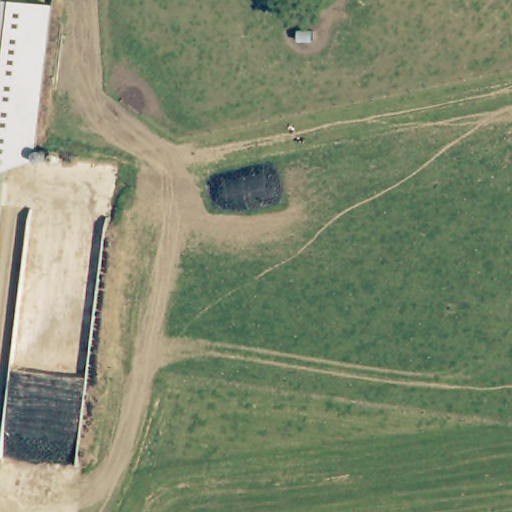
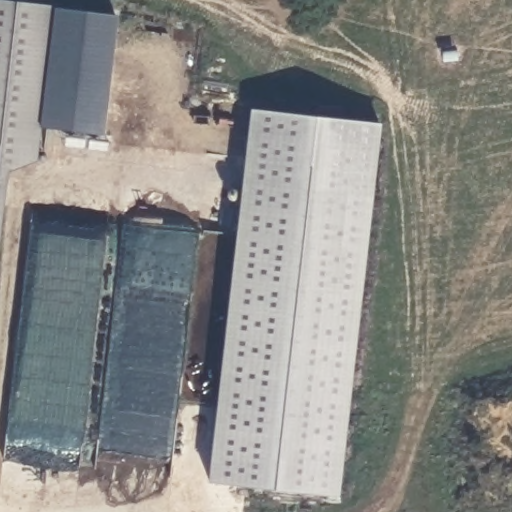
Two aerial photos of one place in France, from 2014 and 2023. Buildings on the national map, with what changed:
unchanged [(37,164),(8,174),(0,239),(0,1),(56,7),(37,164)]
new [(106,132),(42,125),(56,7),(119,14),(106,132)]
new [(341,496),(209,481),(251,109),(382,124),(341,496)]

